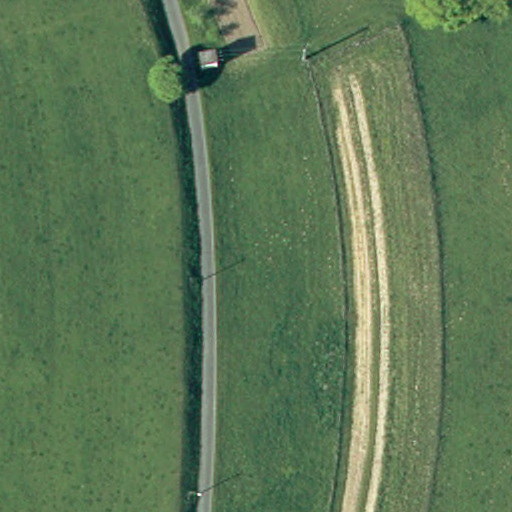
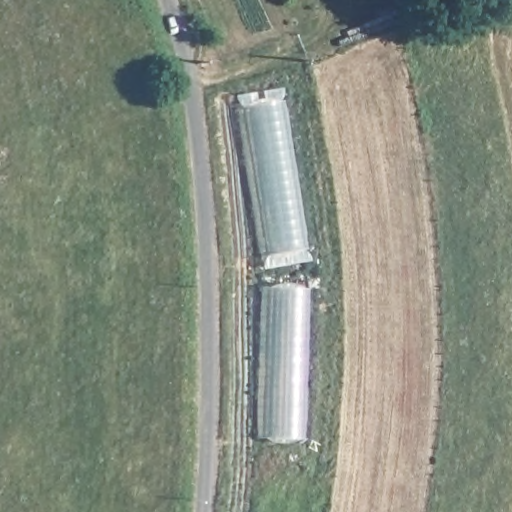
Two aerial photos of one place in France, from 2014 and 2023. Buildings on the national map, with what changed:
new [(242,107),(289,99),(312,249),(264,257),(242,107)]
new [(268,286),(312,287),(307,438),(265,437),(268,286)]

